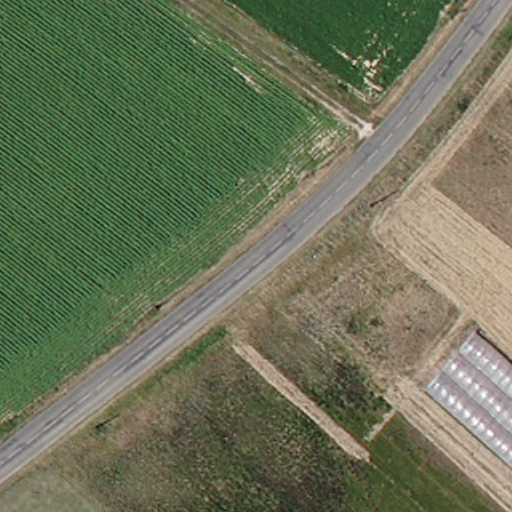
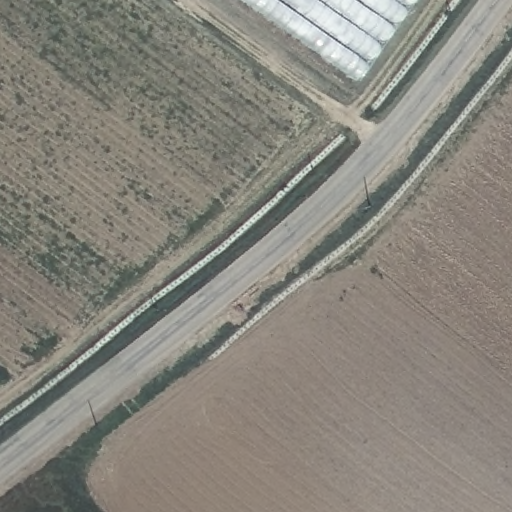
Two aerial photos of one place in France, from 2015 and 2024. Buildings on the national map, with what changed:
new [(357,81),(239,0),(414,0),(357,81)]
demolished [(512,368),(512,493),(417,407),(475,335),(512,368)]

